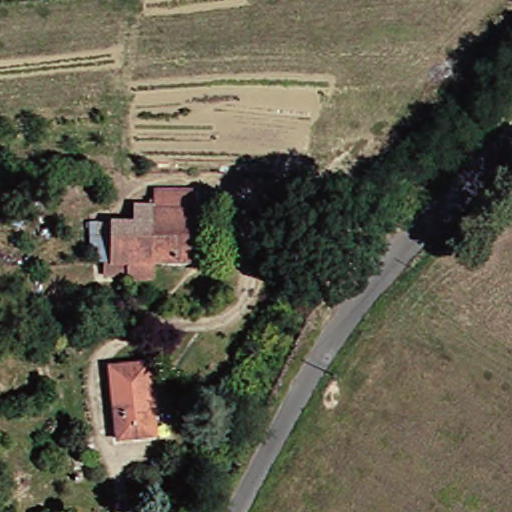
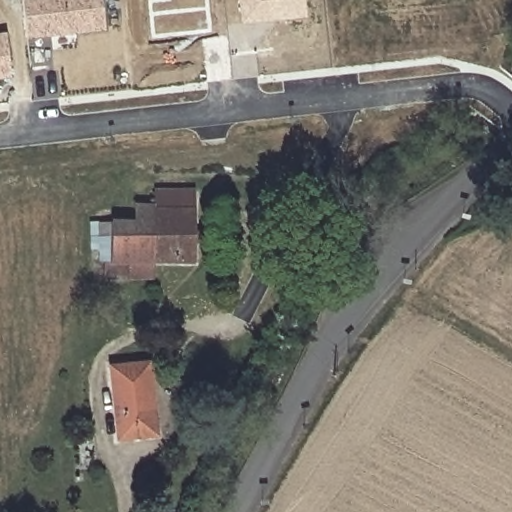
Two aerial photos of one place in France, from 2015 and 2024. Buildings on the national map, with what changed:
new [(22,0),(101,0),(105,30),(26,38),(22,0)]
new [(238,0),(304,0),(306,17),(241,24),(238,0)]
new [(11,78),(0,80),(0,33),(6,32),(11,78)]
unchanged [(149,273),(140,272),(140,268),(119,266),(120,255),(114,254),(114,248),(106,248),(106,237),(106,222),(149,222),(150,204),(164,204),(164,198),(169,198),(169,189),(207,189),(207,261),(168,259),(166,274),(149,273)]
unchanged [(114,366),(152,362),(160,434),(121,438),(114,366)]

